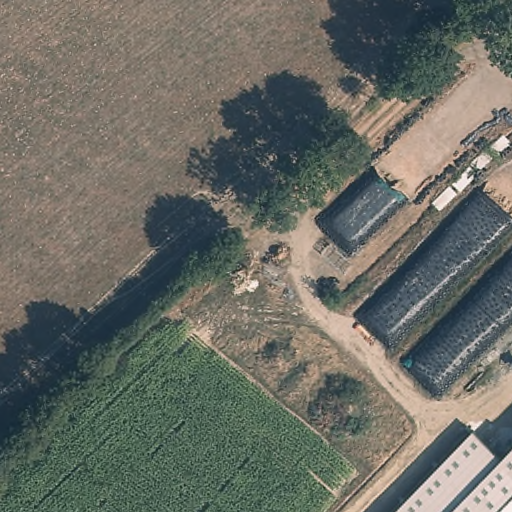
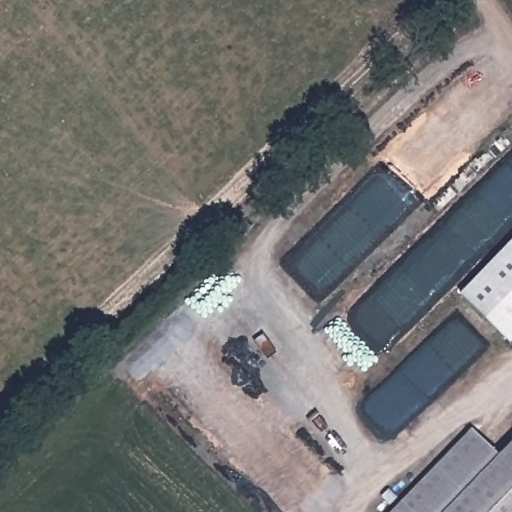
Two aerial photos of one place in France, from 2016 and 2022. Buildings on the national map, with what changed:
new [(512,338),(509,341),(466,300),(512,252),(512,338)]
unchanged [(503,455),(512,446),(512,512),(391,512),(473,429),(503,455)]

